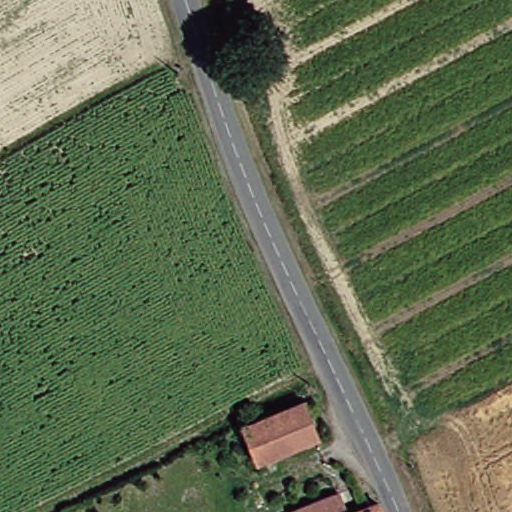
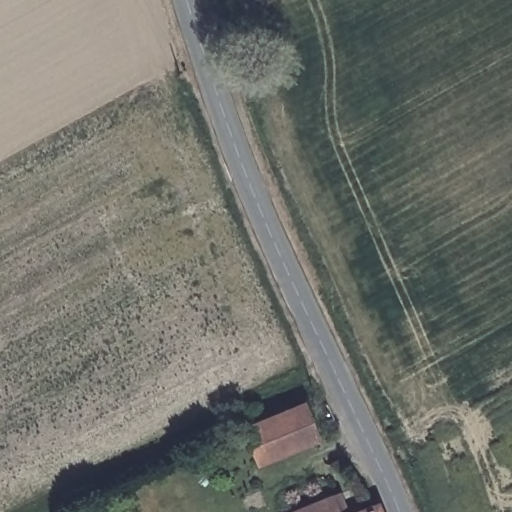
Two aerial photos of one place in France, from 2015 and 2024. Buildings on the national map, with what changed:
unchanged [(316,397),(329,436),(269,460),(253,421),(316,397)]
unchanged [(350,490),(359,512),(293,512),(341,494),(350,490)]
unchanged [(392,512),(362,512),(379,505),(388,502),(392,512)]

